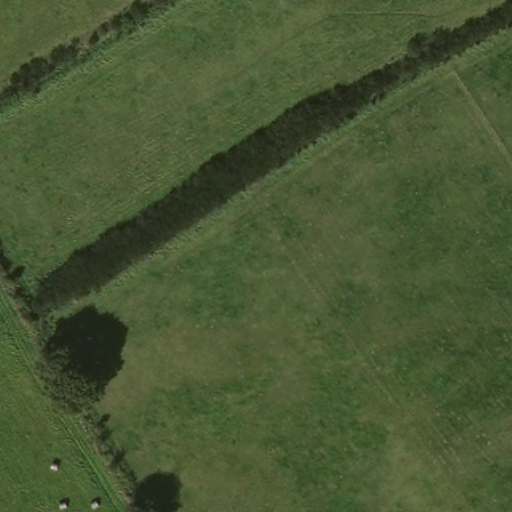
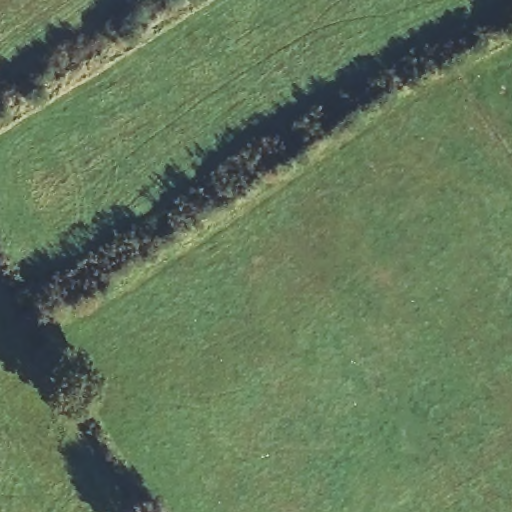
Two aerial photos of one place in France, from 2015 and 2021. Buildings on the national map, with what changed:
[]

